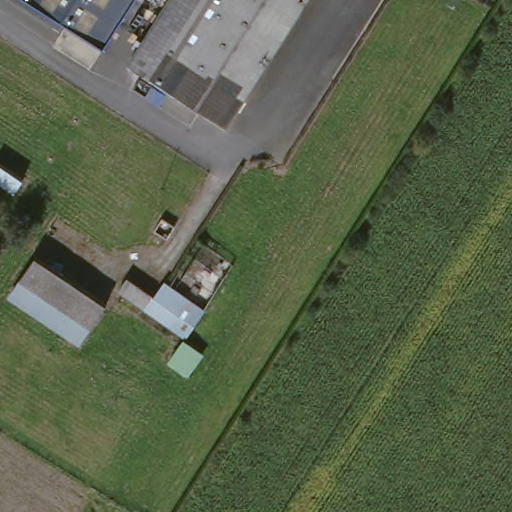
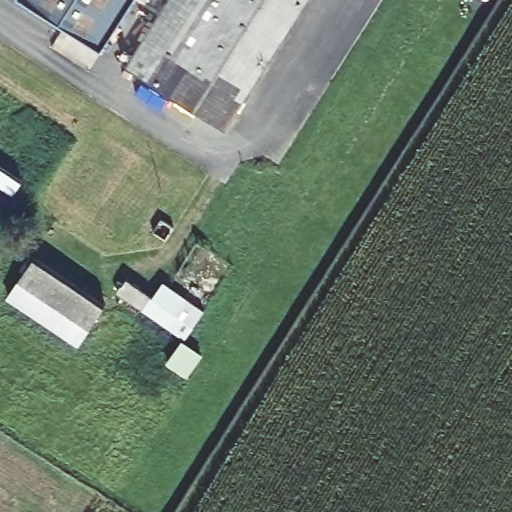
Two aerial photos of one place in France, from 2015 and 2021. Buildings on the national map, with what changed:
unchanged [(113,40),(49,0),(139,0),(113,40)]
unchanged [(149,70),(132,60),(172,0),(310,0),(230,123),(149,70)]
unchanged [(18,192),(0,181),(0,166),(24,180),(18,192)]
unchanged [(106,305),(83,342),(11,297),(35,258),(106,305)]
unchanged [(162,296),(171,282),(205,305),(197,318),(188,333),(120,289),(130,275),(162,296)]
unchanged [(173,357),(185,337),(201,347),(205,350),(192,370),(189,367),(173,357)]

